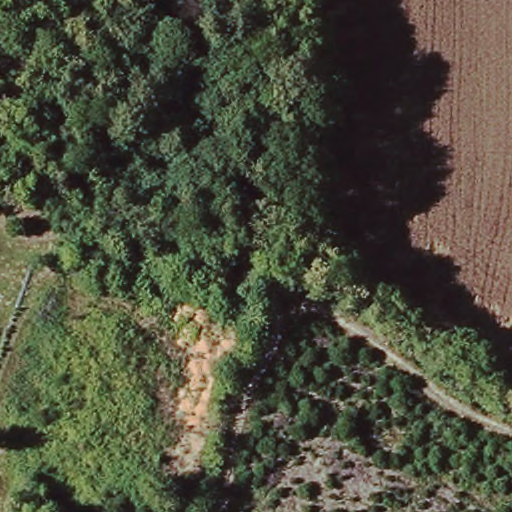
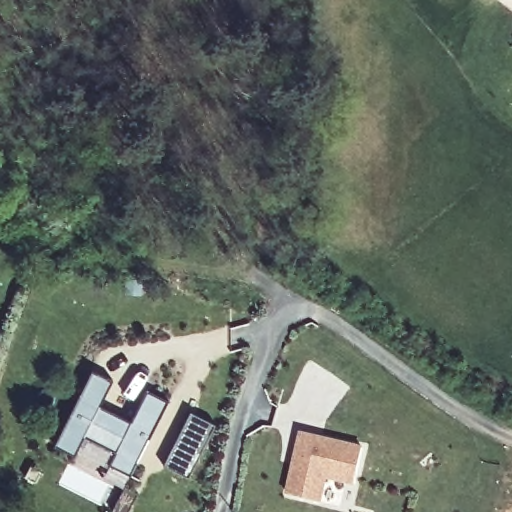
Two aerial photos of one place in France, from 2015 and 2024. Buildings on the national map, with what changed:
new [(92,371),(112,382),(99,407),(130,423),(146,392),(167,403),(129,477),(107,466),(114,454),(83,437),(73,457),(53,446),(92,371)]
new [(189,414),(214,428),(185,481),(161,467),(189,414)]
new [(299,451),(303,434),(365,448),(356,484),(327,477),(322,502),(289,494),(295,464),(299,451)]

